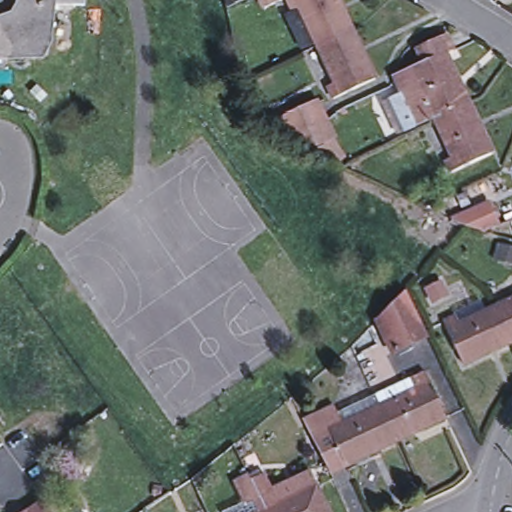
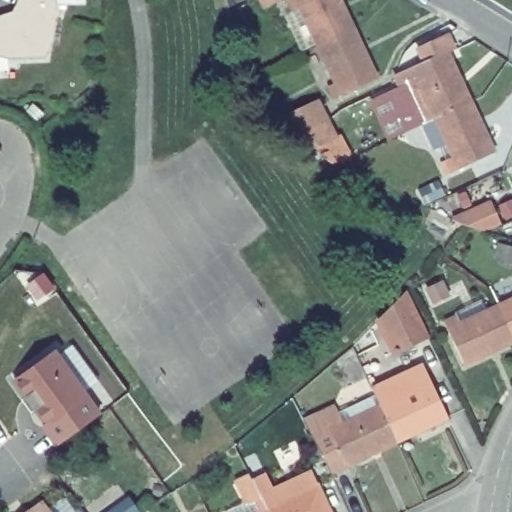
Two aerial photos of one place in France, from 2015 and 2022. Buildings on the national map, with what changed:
unchanged [(14,15),(20,5),(21,0),(86,0),(86,8),(54,6),(53,8),(53,15),(51,15),(51,18),(53,18),(51,41),(50,47),(46,54),(29,55),(23,59),(7,59),(2,56),(0,55),(0,20),(14,15)]
unchanged [(271,7),(267,0),(287,0),(271,7)]
unchanged [(357,29),(322,45),(304,7),(297,10),(292,0),(343,0),(357,29)]
unchanged [(357,29),(382,80),(338,99),(333,87),(340,82),(322,45),(357,29)]
unchanged [(406,85),(400,72),(424,62),(417,47),(446,34),(454,49),(446,53),(469,102),(434,119),(417,127),(400,87),(406,85)]
unchanged [(469,102),(493,152),(451,172),(445,160),(452,156),(434,119),(469,102)]
unchanged [(335,130),(337,132),(300,149),(291,131),(327,114),(335,130)]
unchanged [(500,224),(487,232),(465,226),(450,219),(489,201),(500,224)]
unchanged [(408,290),(429,335),(392,353),(379,318),(365,304),(390,277),(408,290)]
unchanged [(498,305),(512,298),(512,337),(498,305)]
unchanged [(443,322),(455,316),(459,323),(498,305),(512,337),(512,341),(463,365),(443,322)]
new [(13,380),(52,352),(97,415),(56,446),(41,425),(45,423),(34,409),(30,412),(20,400),(25,396),(13,380)]
unchanged [(374,394),(415,376),(417,380),(427,375),(447,417),(397,441),(375,397),(374,394)]
unchanged [(330,472),(304,421),(334,407),(338,414),(375,397),(397,441),(330,472)]
unchanged [(251,475),(253,478),(267,473),(274,489),(311,472),(318,486),(330,512),(252,512),(237,481),(251,475)]
new [(107,512),(128,497),(138,512),(107,512)]
unchanged [(45,498),(55,512),(28,512),(27,510),(45,498)]

